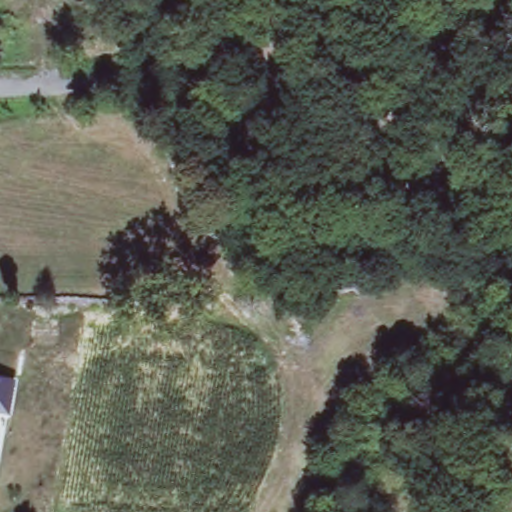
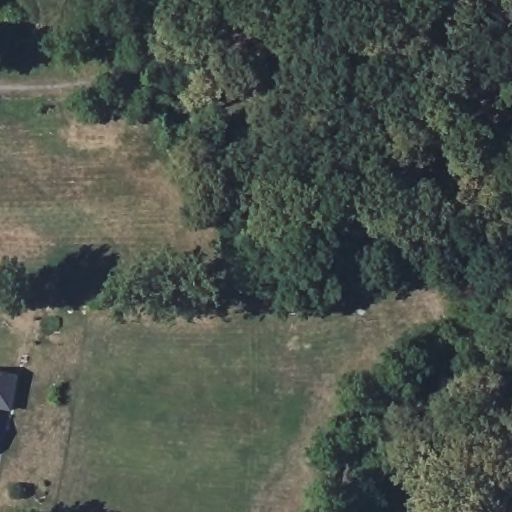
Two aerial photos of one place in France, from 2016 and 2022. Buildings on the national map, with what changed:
unchanged [(10,411),(0,410),(0,378),(14,380),(10,411)]

